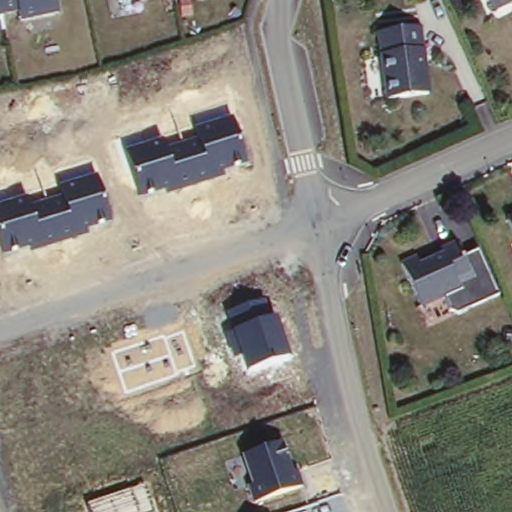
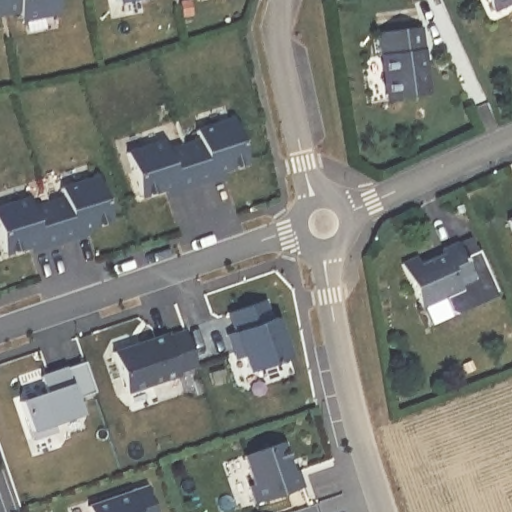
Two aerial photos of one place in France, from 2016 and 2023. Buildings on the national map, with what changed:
unchanged [(58,12),(21,20),(18,11),(0,15),(0,0),(54,0),(58,12)]
unchanged [(121,2),(120,0),(133,0),(121,2)]
unchanged [(485,8),(482,0),(502,0),(485,8)]
unchanged [(512,2),(508,3),(506,0),(512,0),(512,2)]
unchanged [(413,31),(416,53),(413,54),(418,98),(378,100),(375,59),(371,57),(371,35),(413,31)]
unchanged [(225,174),(225,180),(164,197),(162,191),(140,198),(127,154),(162,142),(164,149),(197,137),(195,131),(230,120),(246,164),(225,174)]
unchanged [(87,228),(90,236),(32,254),(29,247),(3,255),(0,243),(0,210),(25,200),(29,210),(62,198),(59,188),(96,175),(111,221),(87,228)]
unchanged [(512,238),(507,227),(512,225),(512,238)]
unchanged [(407,256),(410,262),(433,251),(431,247),(446,240),(464,274),(447,281),(449,287),(412,307),(391,264),(407,256)]
unchanged [(247,371),(233,329),(226,313),(267,299),(277,318),(291,356),(247,371)]
new [(166,327),(167,329),(184,323),(197,359),(178,366),(179,368),(128,386),(113,344),(166,327)]
new [(19,395),(45,385),(41,370),(85,354),(95,384),(76,391),(81,406),(53,415),(56,424),(33,432),(19,395)]
unchanged [(256,504),(246,478),(252,476),(244,452),(283,439),(302,488),(256,504)]
unchanged [(144,488),(153,512),(91,512),(89,506),(144,488)]

